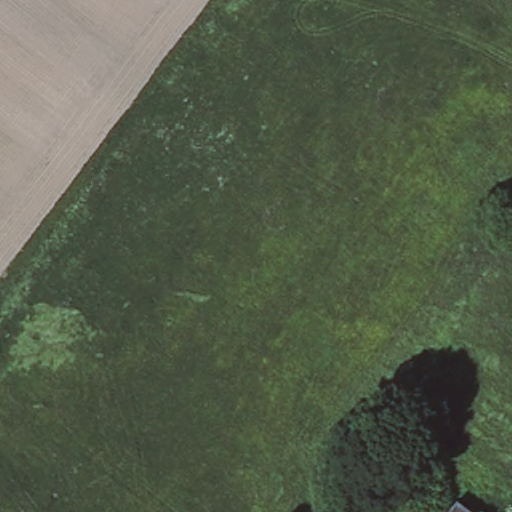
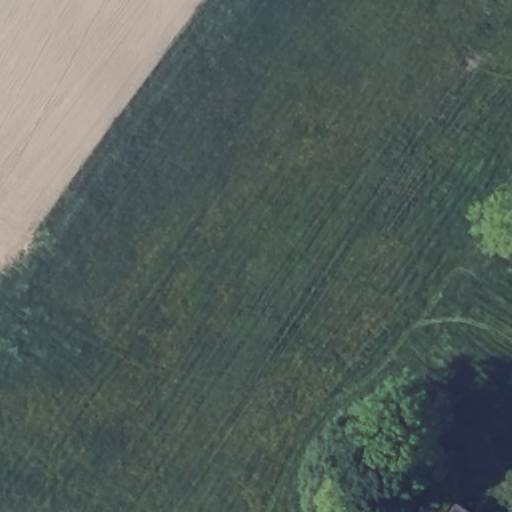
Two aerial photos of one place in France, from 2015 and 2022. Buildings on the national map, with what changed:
unchanged [(473,512),(447,512),(457,500),(473,512)]

